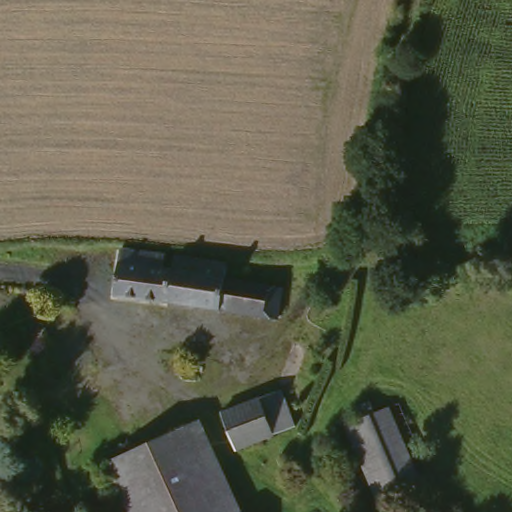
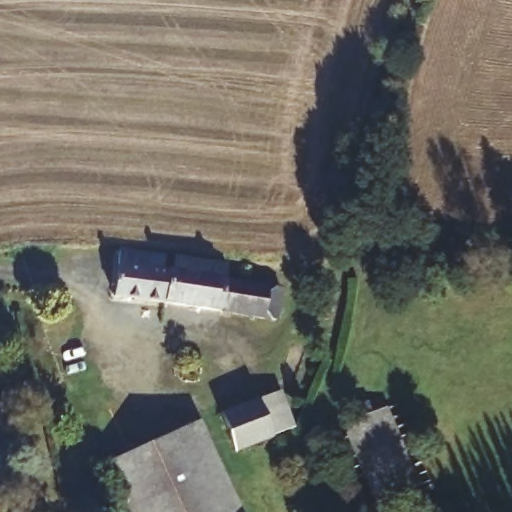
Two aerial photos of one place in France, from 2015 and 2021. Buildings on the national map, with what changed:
unchanged [(115,302),(115,251),(169,253),(170,303),(115,302)]
unchanged [(169,253),(226,260),(224,275),(279,282),(278,311),(170,303),(169,253)]
unchanged [(239,402),(278,388),(284,396),(272,426),(254,433),(234,441),(219,410),(239,402)]
unchanged [(415,476),(377,495),(347,423),(386,406),(415,476)]
unchanged [(201,433),(209,431),(243,509),(245,512),(158,512),(140,486),(124,460),(201,433)]
unchanged [(124,460),(140,486),(158,512),(136,512),(116,467),(124,460)]

